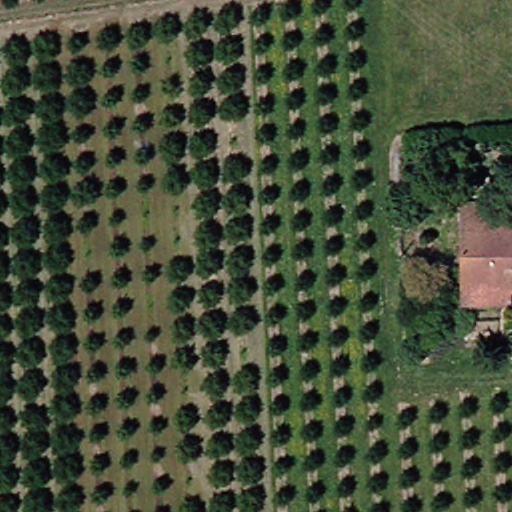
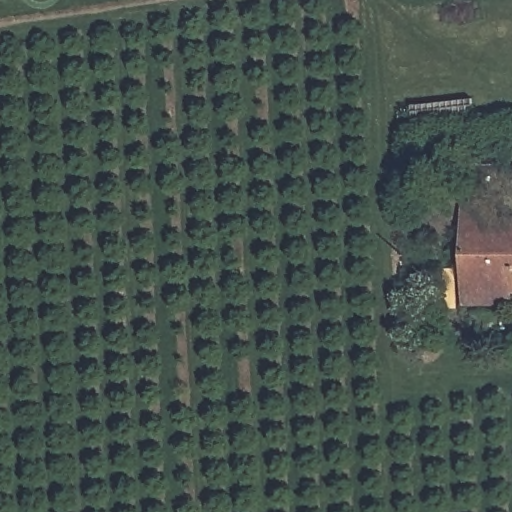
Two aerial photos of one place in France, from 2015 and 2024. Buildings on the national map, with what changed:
unchanged [(507,194),(512,194),(512,203),(507,203),(507,194)]
unchanged [(459,308),(457,209),(489,209),(490,224),(512,224),(512,292),(507,292),(507,308),(482,308),(459,308)]

